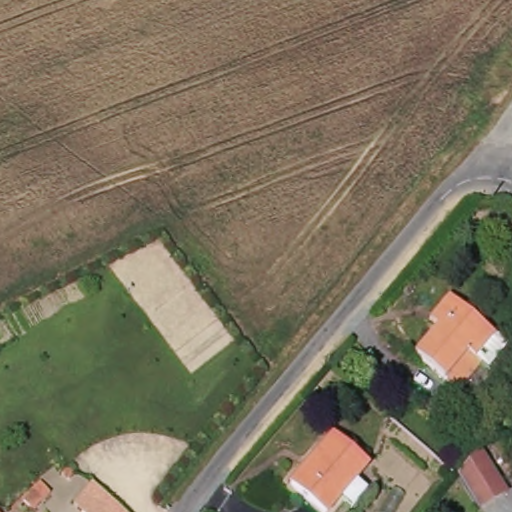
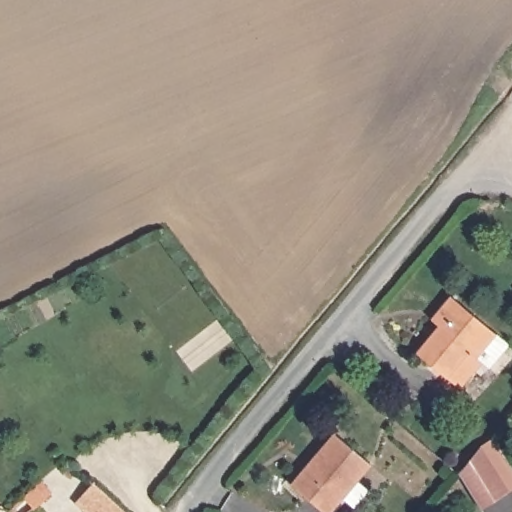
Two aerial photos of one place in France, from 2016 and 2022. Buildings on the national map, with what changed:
unchanged [(508,344),(489,367),(482,361),(459,389),(415,352),(437,326),(430,319),(435,313),(449,296),(508,344)]
unchanged [(328,512),(323,512),(290,484),(334,433),(369,463),(328,512)]
unchanged [(484,442),(511,486),(484,503),(462,469),(484,442)]
unchanged [(41,481),(51,493),(33,510),(23,498),(41,481)]
unchanged [(74,503),(92,482),(124,512),(84,512),(74,503)]

